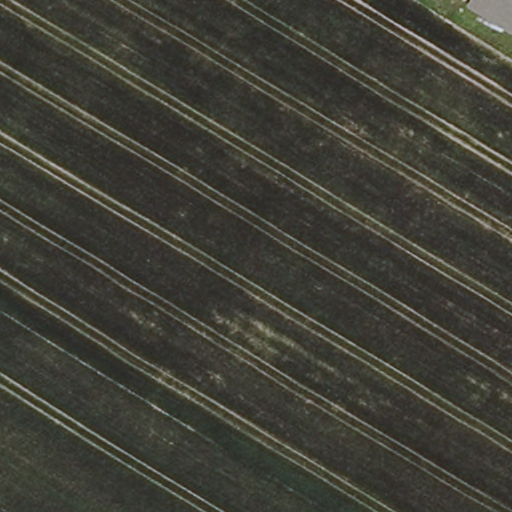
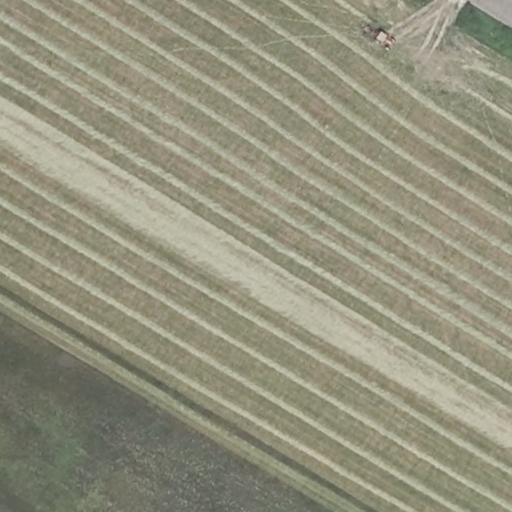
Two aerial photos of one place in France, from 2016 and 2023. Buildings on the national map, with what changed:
unchanged [(468,5),(472,0),(512,0),(512,33),(468,5)]

